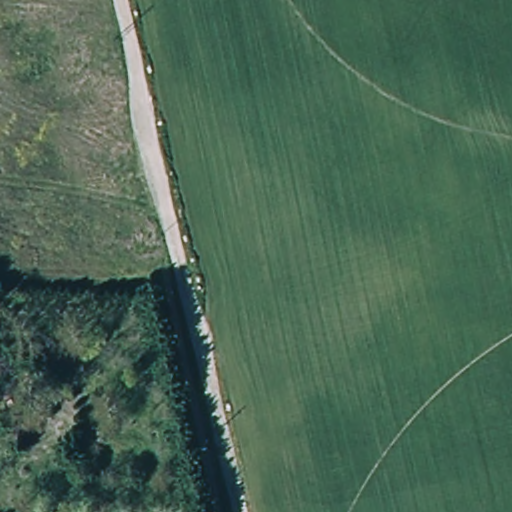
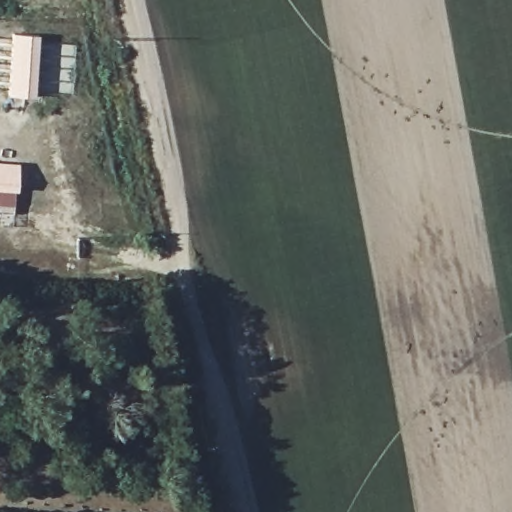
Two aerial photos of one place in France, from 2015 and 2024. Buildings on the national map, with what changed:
new [(38,33),(33,96),(6,93),(11,31),(38,33)]
new [(15,188),(12,188),(11,202),(0,201),(0,161),(17,162),(15,188)]
unchanged [(0,375),(0,348),(13,366),(0,375)]

